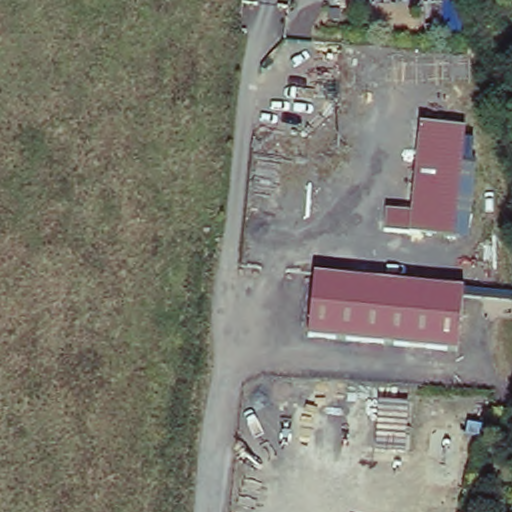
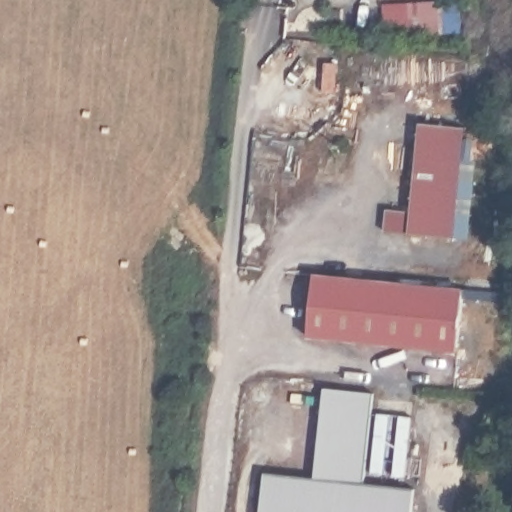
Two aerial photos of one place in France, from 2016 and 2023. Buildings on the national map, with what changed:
unchanged [(383,211),(409,211),(419,126),(464,128),(454,237),(407,232),(382,226),(383,211)]
unchanged [(309,270),(462,287),(455,351),(303,333),(309,270)]
new [(313,478),(323,387),(373,390),(363,481),(414,486),(412,512),(259,512),(263,473),(313,478)]

